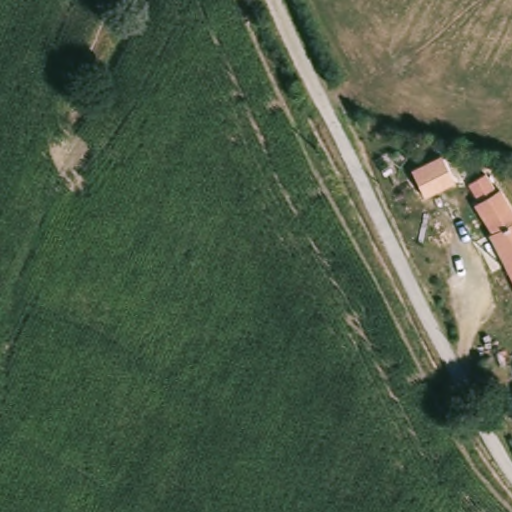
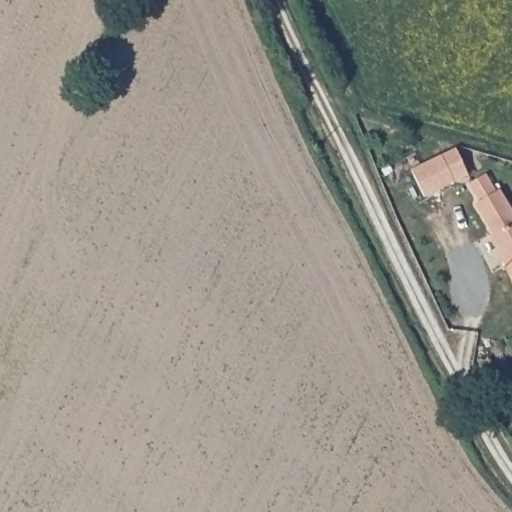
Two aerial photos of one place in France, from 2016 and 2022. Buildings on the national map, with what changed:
unchanged [(411,180),(429,147),(458,165),(437,198),(411,180)]
unchanged [(471,205),(480,200),(470,182),(488,172),(512,204),(512,268),(507,271),(471,205)]
unchanged [(512,268),(512,280),(507,271),(512,268)]

